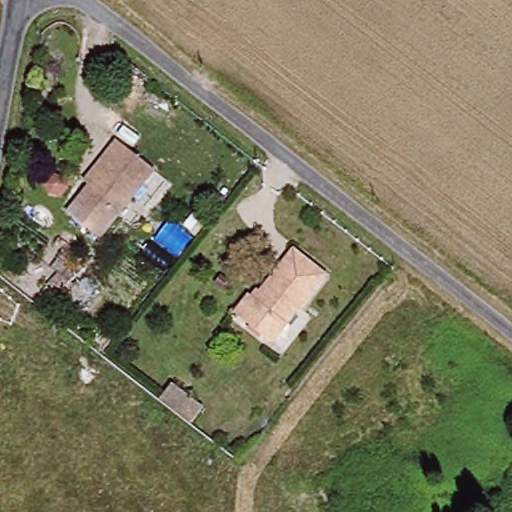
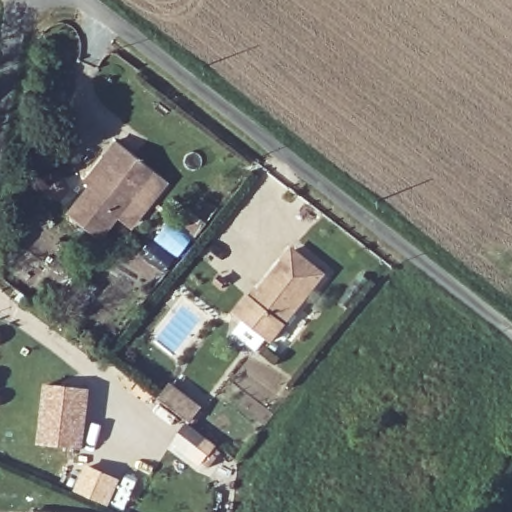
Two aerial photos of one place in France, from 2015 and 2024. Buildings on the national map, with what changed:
unchanged [(148,168),(97,243),(64,219),(84,189),(78,184),(91,165),(106,141),(148,168)]
unchanged [(240,287),(249,293),(285,245),(325,277),(272,345),(234,314),(225,307),(240,287)]
new [(48,385),(87,388),(83,448),(43,445),(48,385)]
unchanged [(158,400),(169,386),(189,402),(199,410),(190,425),(178,415),(158,400)]

